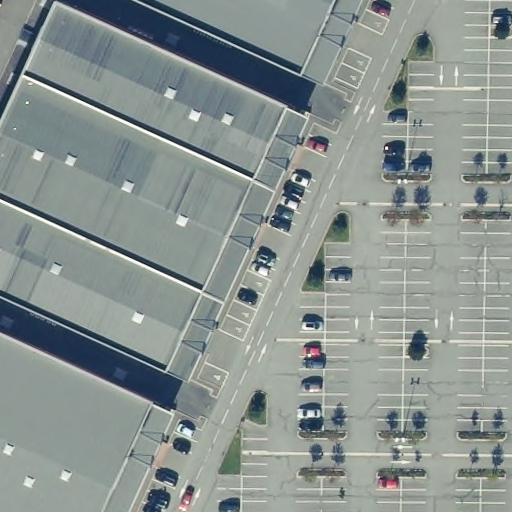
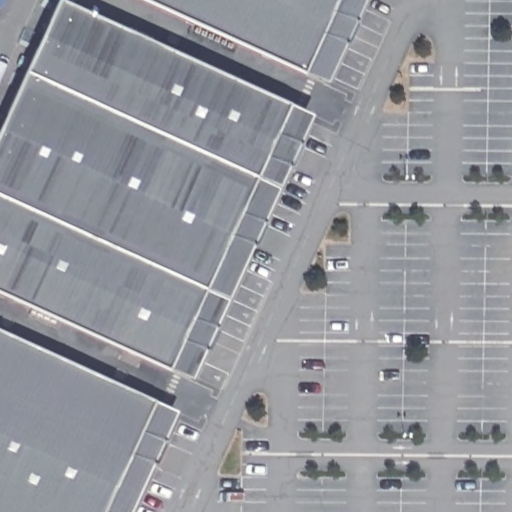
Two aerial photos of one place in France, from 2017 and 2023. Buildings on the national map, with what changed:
unchanged [(192,380),(0,290),(0,126),(56,0),(310,114),(192,380)]
unchanged [(325,80),(142,0),(362,0),(325,80)]
unchanged [(0,512),(0,330),(175,411),(130,512),(0,512)]

